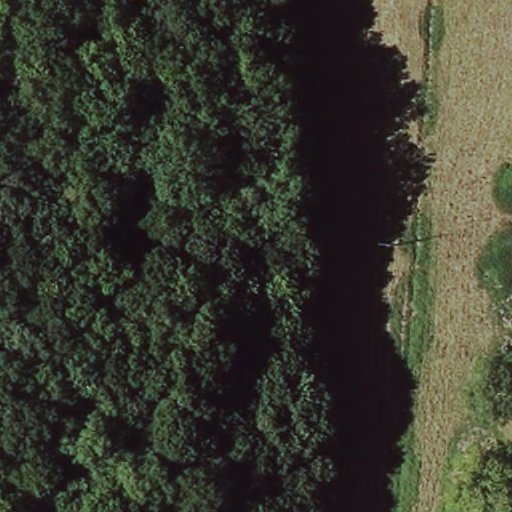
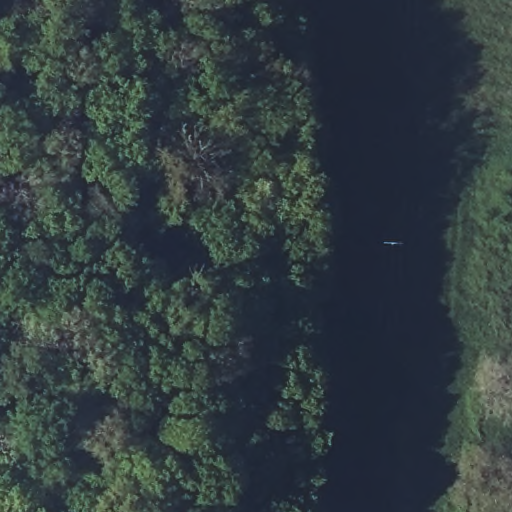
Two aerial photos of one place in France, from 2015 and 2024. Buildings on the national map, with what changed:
[]

